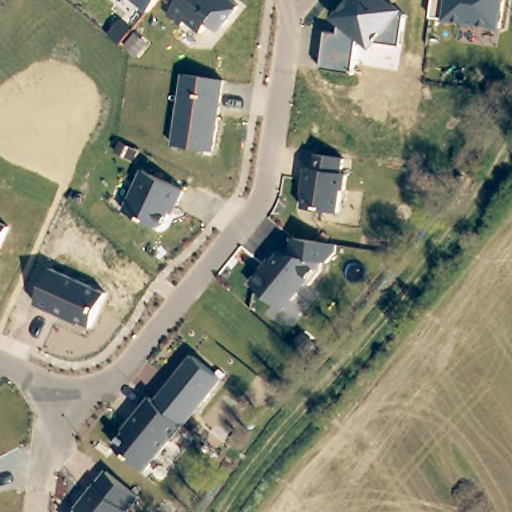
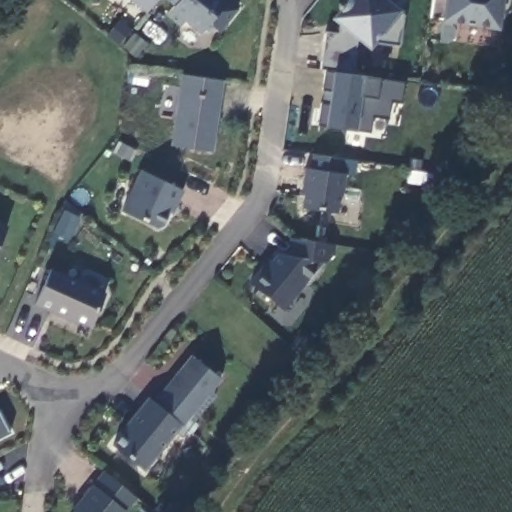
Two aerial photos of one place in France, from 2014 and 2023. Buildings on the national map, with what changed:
unchanged [(132,0),(156,0),(147,12),(132,0)]
unchanged [(221,26),(211,19),(200,32),(184,20),(180,26),(166,15),(174,5),(168,0),(229,0),(237,7),(221,26)]
unchanged [(403,11),(404,12),(399,46),(375,42),(369,49),(357,39),(351,72),(320,69),(325,32),(337,32),(338,24),(332,17),(346,0),(393,0),(391,2),(403,11)]
unchanged [(431,0),(501,0),(497,28),(429,17),(431,0)]
new [(403,104),(393,103),(390,117),(374,116),(372,132),(355,131),(325,127),(317,126),(320,103),(330,105),(331,91),(322,89),(325,69),(333,70),(351,72),(379,78),(406,82),(403,104)]
unchanged [(221,81),(211,152),(171,146),(182,75),(221,81)]
unchanged [(311,169),(314,153),(343,158),(340,174),(346,175),(344,192),(339,191),(336,213),(299,208),(304,168),(311,169)]
unchanged [(140,171),(182,191),(175,206),(170,207),(161,227),(156,229),(121,212),(140,171)]
unchanged [(7,227),(0,242),(0,223),(7,227)]
unchanged [(268,260),(271,262),(278,255),(288,256),(290,239),(333,245),(332,254),(325,262),(320,262),(319,271),(307,285),(304,282),(281,310),(249,283),(268,260)]
unchanged [(105,293),(90,327),(35,304),(50,268),(105,293)]
unchanged [(191,357),(219,379),(181,426),(180,425),(164,412),(154,403),(191,357)]
unchanged [(180,425),(142,472),(112,447),(129,426),(127,424),(148,398),(154,403),(164,412),(180,425)]
unchanged [(138,497),(125,512),(72,512),(106,472),(138,497)]

